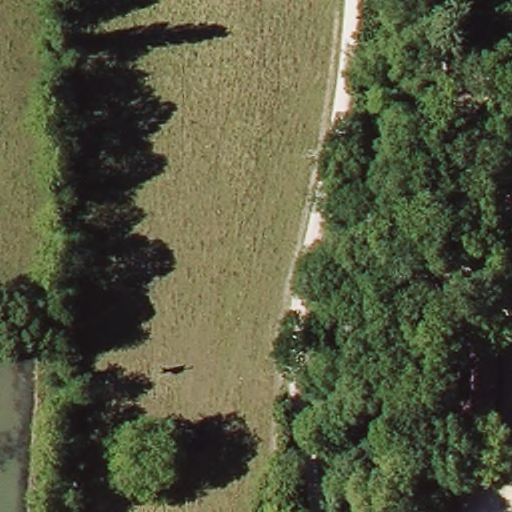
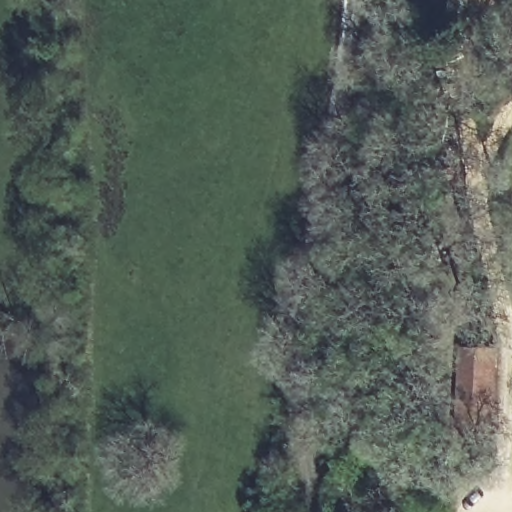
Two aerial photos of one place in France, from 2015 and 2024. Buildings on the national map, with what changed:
unchanged [(490,434),(457,432),(462,349),(496,353),(490,434)]

